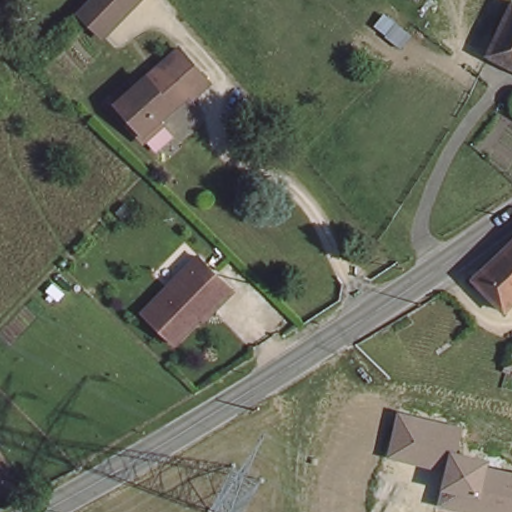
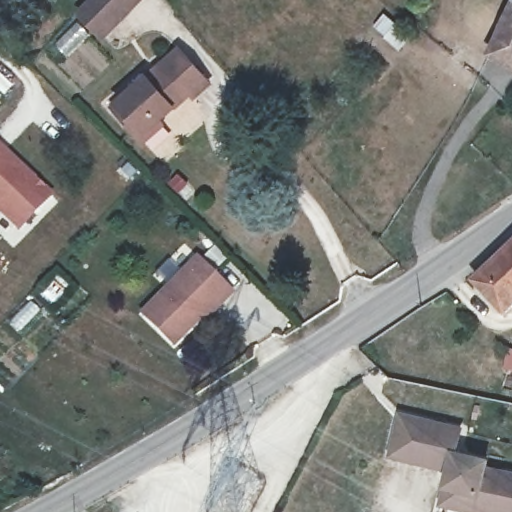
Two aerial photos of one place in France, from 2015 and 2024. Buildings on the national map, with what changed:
unchanged [(93,6),(100,0),(140,0),(115,25),(105,34),(85,15),(93,6)]
unchanged [(512,10),(512,66),(505,63),(490,54),(512,10)]
unchanged [(118,98),(180,45),(210,79),(196,92),(193,89),(178,104),(163,117),(165,119),(144,138),(129,120),(114,103),(118,98)]
new [(0,213),(0,142),(55,194),(18,230),(0,213)]
unchanged [(477,280),(512,251),(512,307),(504,314),(477,280)]
unchanged [(201,317),(176,344),(143,315),(197,257),(233,289),(222,302),(205,320),(201,317)]
unchanged [(457,453),(489,459),(487,469),(512,474),(512,512),(459,512),(436,508),(442,492),(445,473),(386,460),(397,413),(461,427),(457,453)]

